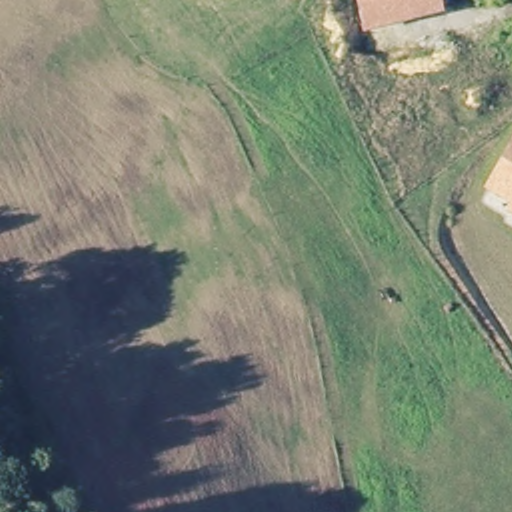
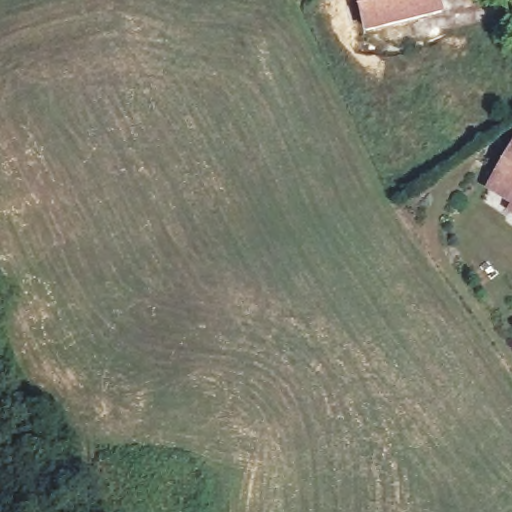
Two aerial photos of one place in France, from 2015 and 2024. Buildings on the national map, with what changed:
unchanged [(444,14),(364,32),(357,0),(441,0),(444,14)]
unchanged [(504,211),(508,204),(484,189),(512,142),(512,216),(504,211)]

